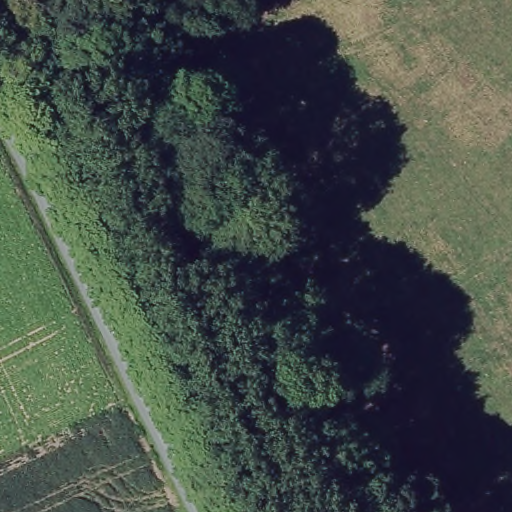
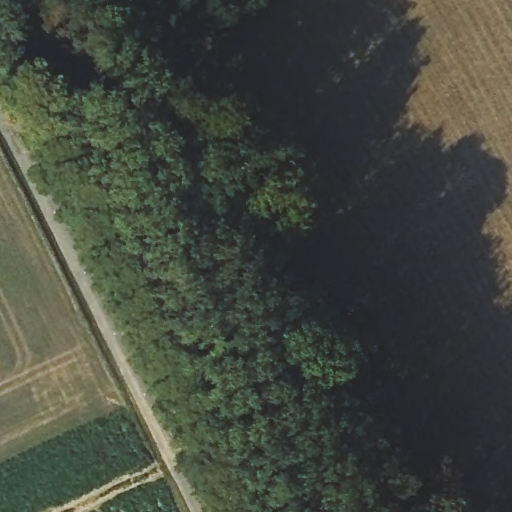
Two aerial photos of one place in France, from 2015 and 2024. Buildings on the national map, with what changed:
[]

